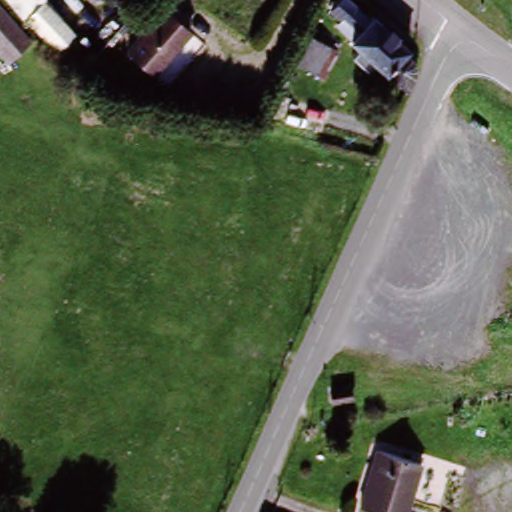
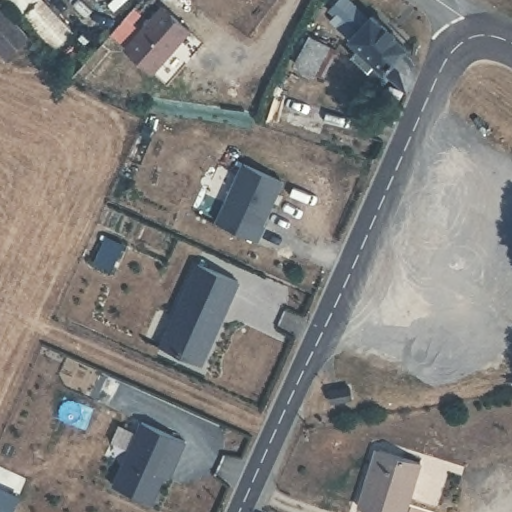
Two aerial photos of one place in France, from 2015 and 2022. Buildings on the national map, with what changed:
unchanged [(20,16),(8,0),(42,0),(75,33),(56,51),(20,16)]
unchanged [(380,77),(375,68),(366,72),(348,59),(353,50),(343,41),(350,31),(325,14),(334,0),(344,0),(367,23),(370,14),(410,47),(404,54),(417,68),(403,95),(380,77)]
unchanged [(1,62),(0,60),(0,9),(13,25),(28,43),(1,62)]
unchanged [(190,33),(150,73),(126,49),(165,9),(190,33)]
unchanged [(340,47),(332,75),(298,65),(311,32),(340,47)]
unchanged [(297,131),(271,123),(283,85),(332,101),(318,139),(297,131)]
new [(245,164),(283,182),(263,224),(265,225),(258,241),(217,222),(245,164)]
new [(200,260),(240,279),(217,328),(215,327),(207,345),(208,346),(200,364),(160,344),(200,260)]
unchanged [(352,397),(333,402),(330,390),(350,385),(352,397)]
demolished [(355,419),(335,425),(332,412),(353,407),(355,419)]
new [(150,512),(135,512),(108,499),(145,421),(189,441),(175,470),(165,493),(160,491),(150,512)]
unchanged [(380,452),(420,464),(405,512),(362,512),(358,510),(367,481),(371,482),(380,452)]
new [(12,509),(7,506),(0,503),(0,483),(14,490),(20,492),(12,509)]

